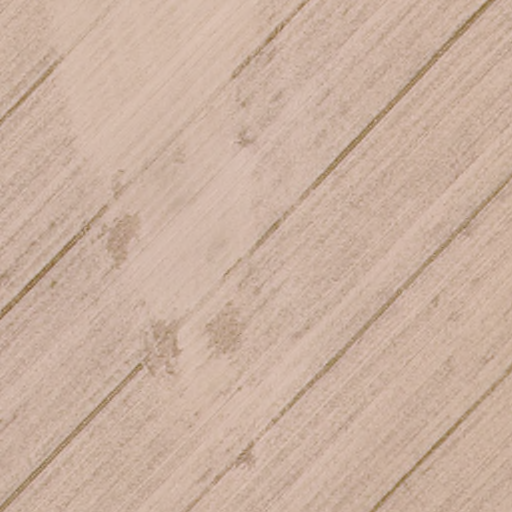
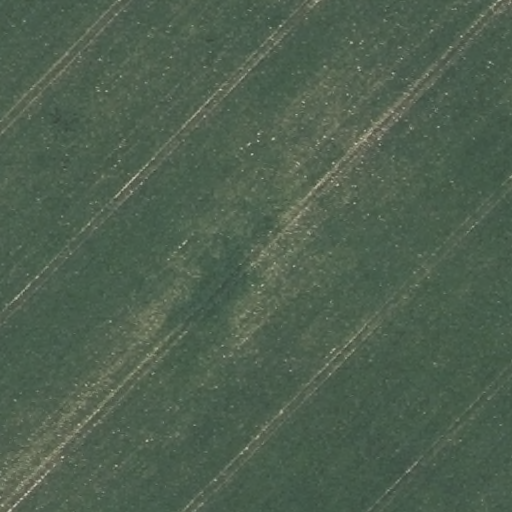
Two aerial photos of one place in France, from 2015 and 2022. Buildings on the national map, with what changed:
[]

